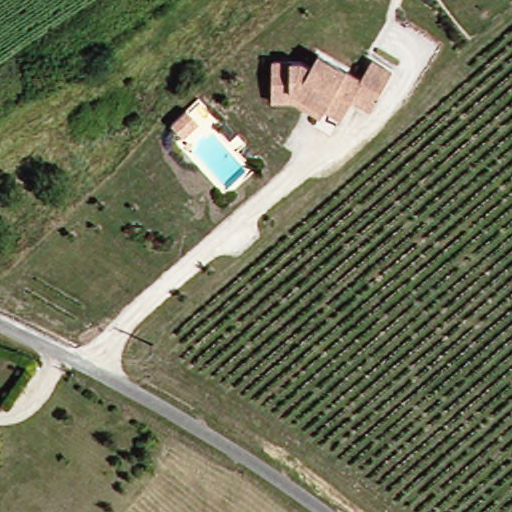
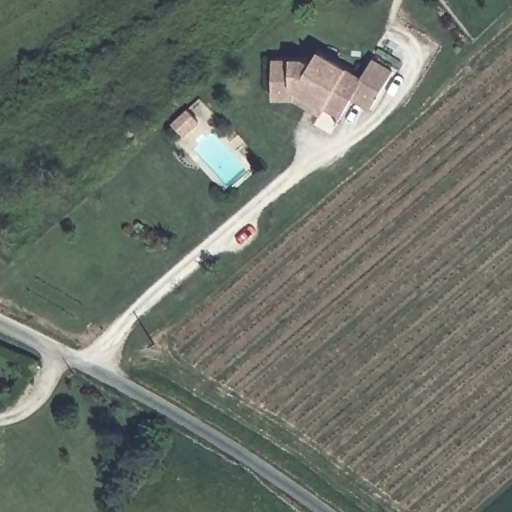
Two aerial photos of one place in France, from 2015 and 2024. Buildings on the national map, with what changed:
unchanged [(295,111),(274,111),(274,100),(275,71),(302,69),(312,75),(319,63),(362,89),(373,70),(393,82),(370,120),(352,109),(342,127),(326,118),(321,126),(295,111)]
unchanged [(184,136),(173,124),(187,110),(199,122),(184,136)]

